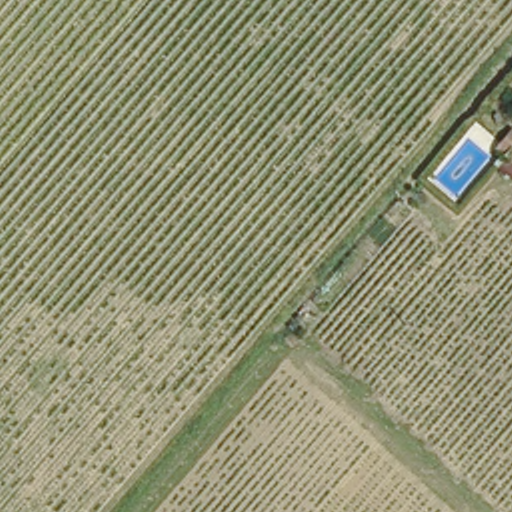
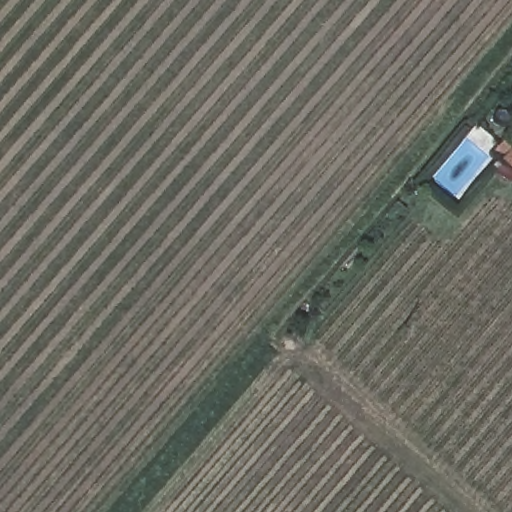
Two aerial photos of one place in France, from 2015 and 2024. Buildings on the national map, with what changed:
unchanged [(503,135),(486,153),(477,146),(494,127),(503,135)]

